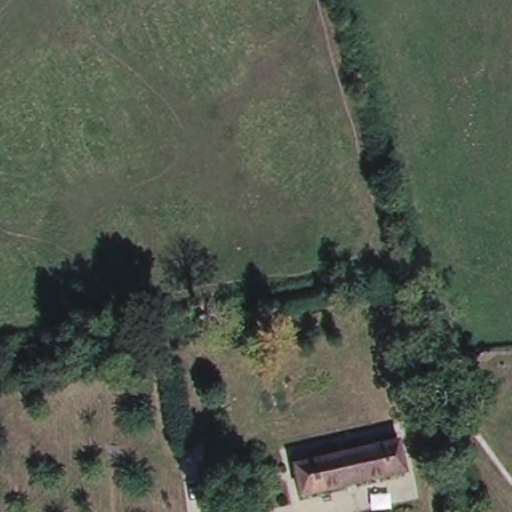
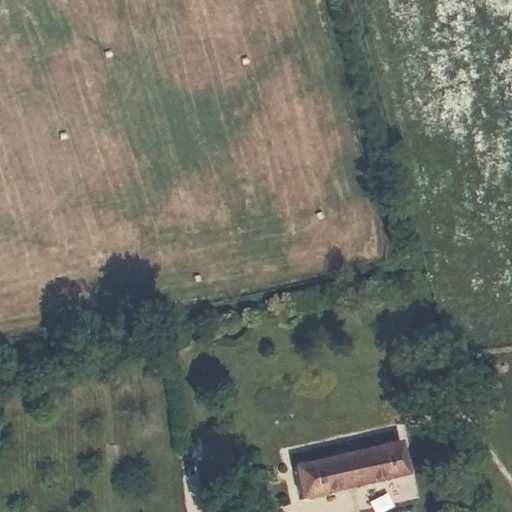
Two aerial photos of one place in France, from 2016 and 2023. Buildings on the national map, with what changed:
unchanged [(397,443),(402,473),(299,488),(294,459),(397,443)]
unchanged [(238,477),(241,497),(214,501),(213,492),(221,489),(219,481),(238,477)]

